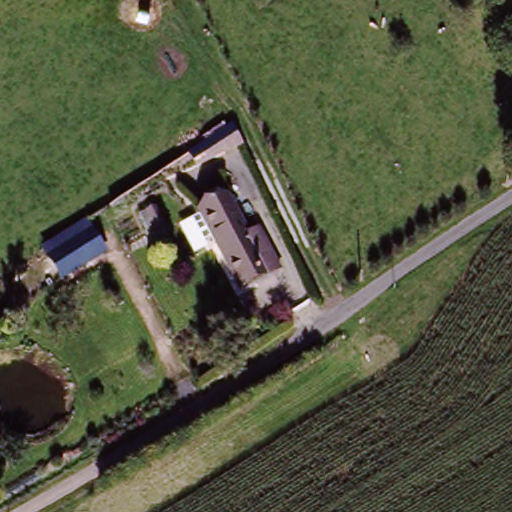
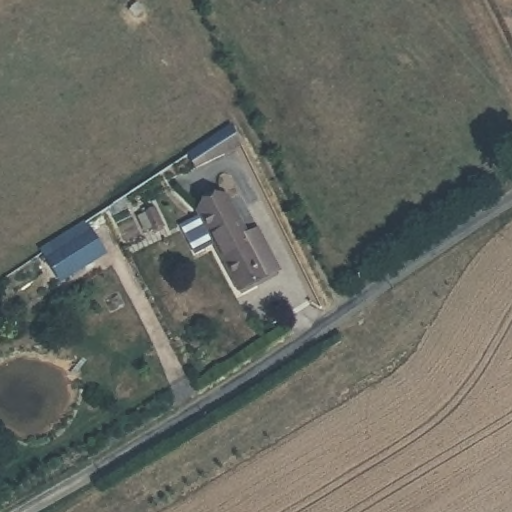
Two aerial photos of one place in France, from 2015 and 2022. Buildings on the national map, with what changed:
unchanged [(233,287),(197,216),(225,201),(245,239),(256,234),(277,276),(267,281),(238,296),(233,287)]
unchanged [(162,227),(150,233),(141,218),(152,211),(162,227)]
unchanged [(41,251),(87,223),(107,256),(62,284),(41,251)]

